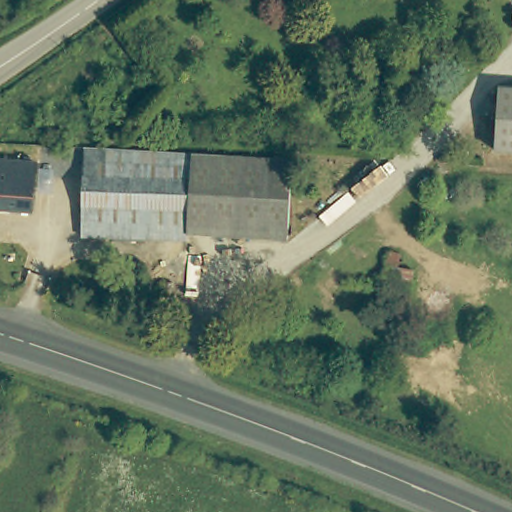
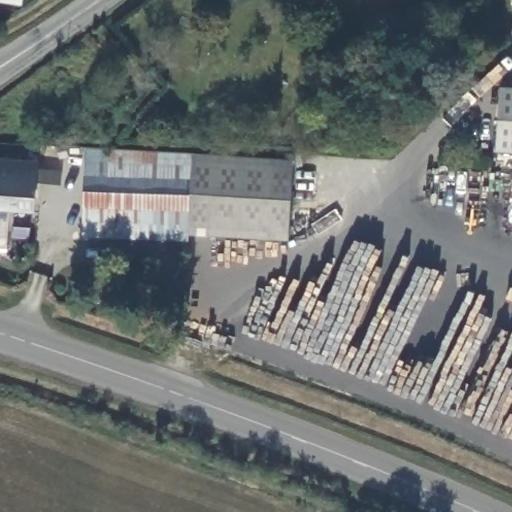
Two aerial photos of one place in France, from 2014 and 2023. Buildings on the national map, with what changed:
unchanged [(493,150),(497,86),(512,87),(512,151),(493,150)]
unchanged [(88,152),(193,155),(193,149),(288,153),(283,233),(189,230),(189,235),(83,232),(88,152)]
unchanged [(30,212),(0,210),(0,160),(34,163),(30,212)]
unchanged [(248,237),(277,238),(277,255),(248,255),(248,237)]

